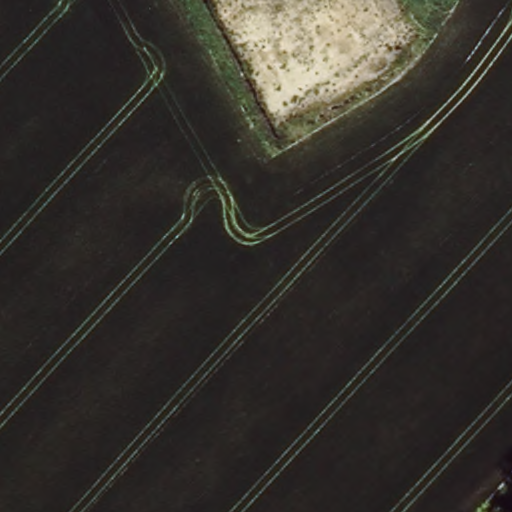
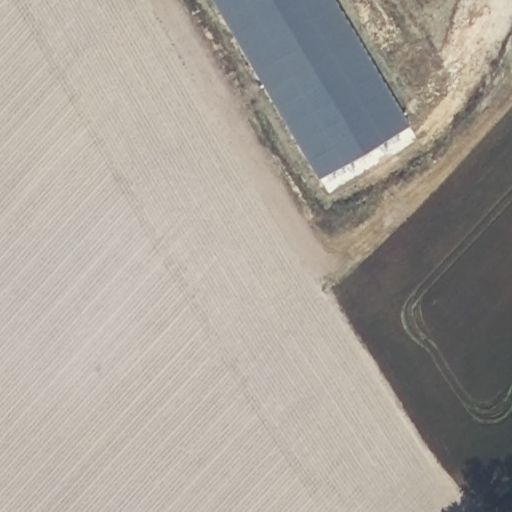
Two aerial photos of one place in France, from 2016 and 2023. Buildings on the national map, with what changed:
new [(415,138),(325,191),(212,0),(334,0),(415,138)]

